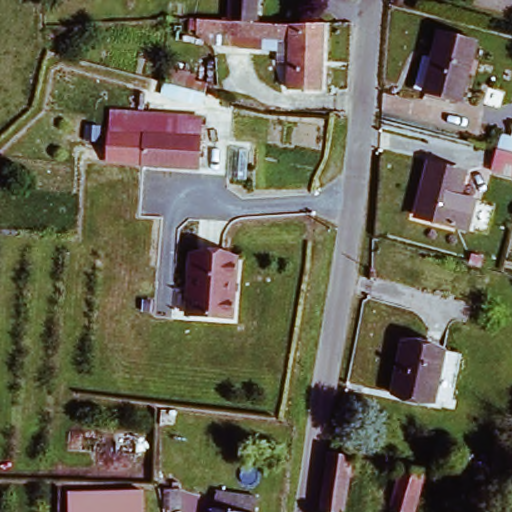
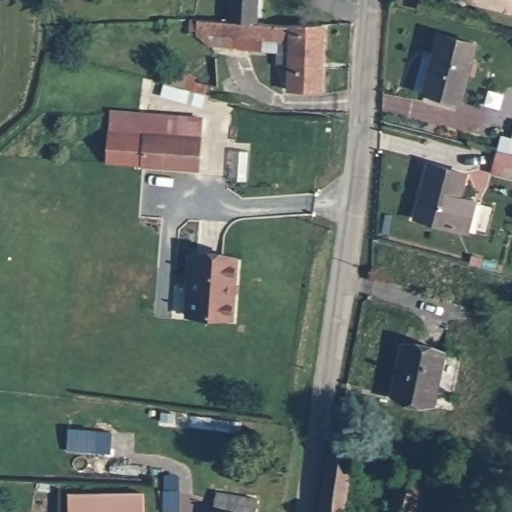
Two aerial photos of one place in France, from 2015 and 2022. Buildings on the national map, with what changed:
unchanged [(233,0),(258,0),(257,23),(232,22),(233,0)]
unchanged [(282,50),(190,46),(190,21),(227,22),(232,22),(257,23),(282,24),(325,25),(323,92),(292,92),(292,65),(282,65),(282,50)]
unchanged [(470,38),(455,97),(420,89),(435,28),(470,38)]
unchanged [(140,119),(196,121),(196,141),(138,139),(140,119)]
unchanged [(103,138),(138,139),(138,168),(102,166),(103,138)]
unchanged [(196,141),(195,170),(138,168),(138,139),(196,141)]
unchanged [(512,152),(512,174),(490,168),(495,147),(512,152)]
unchanged [(414,211),(429,155),(465,165),(457,192),(475,196),(467,226),(450,222),(414,211)]
unchanged [(237,258),(232,319),(185,315),(190,254),(237,258)]
unchanged [(430,399),(390,389),(402,335),(443,345),(430,399)]
unchanged [(353,453),(345,512),(330,512),(318,510),(329,450),(353,453)]
unchanged [(376,472),(378,460),(405,465),(426,469),(420,511),(395,507),(396,498),(398,486),(400,476),(376,472)]
unchanged [(190,505),(171,506),(171,487),(170,477),(188,476),(190,505)]
unchanged [(259,495),(256,512),(216,512),(220,489),(259,495)]
unchanged [(143,512),(69,512),(68,494),(142,492),(143,512)]

